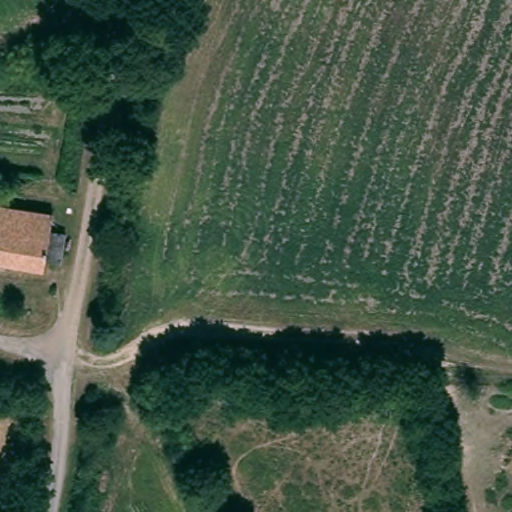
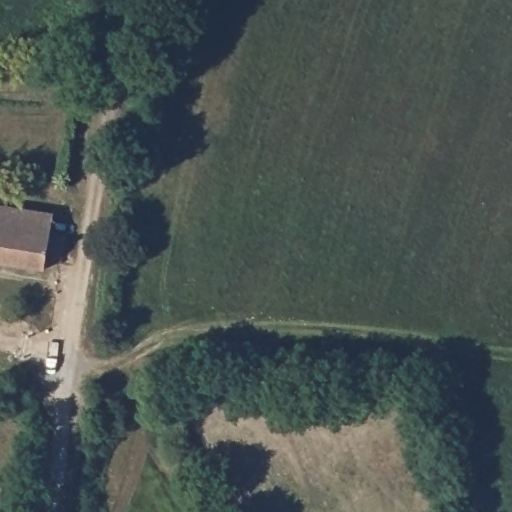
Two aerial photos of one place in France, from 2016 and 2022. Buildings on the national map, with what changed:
unchanged [(55,215),(46,270),(0,263),(0,207),(55,215)]

